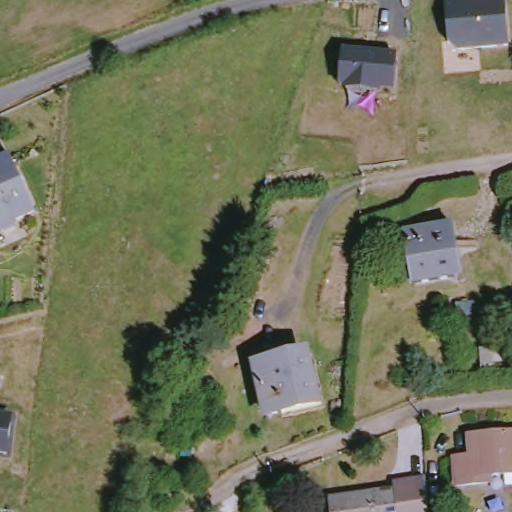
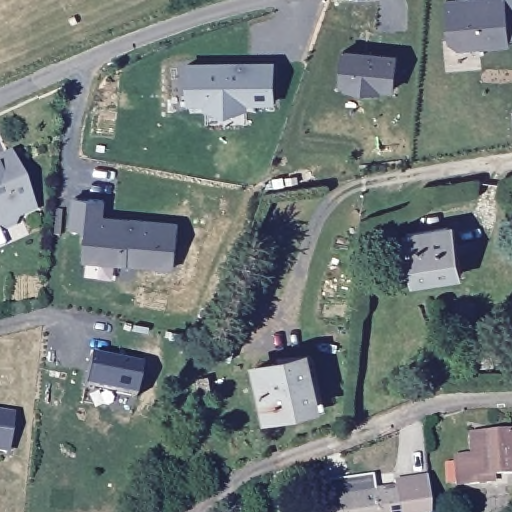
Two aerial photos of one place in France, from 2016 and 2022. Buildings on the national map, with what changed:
unchanged [(512,47),(460,52),(450,42),(447,2),(477,0),(507,0),(512,47)]
unchanged [(396,92),(382,91),(382,95),(347,90),(347,87),(340,85),(345,51),(400,56),(396,92)]
new [(272,66),(273,104),(244,104),(244,109),(205,110),(205,104),(187,104),(186,66),(272,66)]
unchanged [(34,213),(15,222),(13,229),(5,232),(4,232),(0,231),(0,162),(9,158),(34,213)]
new [(104,203),(102,219),(130,222),(177,227),(172,270),(84,262),(87,231),(72,230),(75,200),(104,203)]
unchanged [(454,228),(462,276),(419,284),(415,257),(407,257),(406,242),(412,240),(412,235),(454,228)]
unchanged [(494,362),(492,349),(508,347),(510,360),(494,362)]
unchanged [(318,404),(269,415),(266,399),(261,400),(259,388),(264,387),(260,365),(308,355),(318,404)]
new [(90,358),(142,368),(137,398),(85,389),(90,358)]
unchanged [(202,393),(200,377),(210,376),(212,392),(202,393)]
unchanged [(14,418),(9,454),(0,453),(0,417),(14,418)]
unchanged [(512,476),(497,476),(497,484),(462,486),(460,458),(476,457),(475,436),(512,434),(512,476)]
unchanged [(329,512),(328,498),(395,491),(394,483),(427,480),(429,512),(329,512)]

